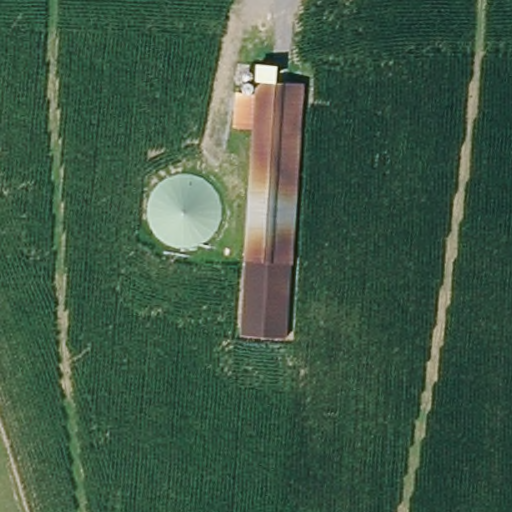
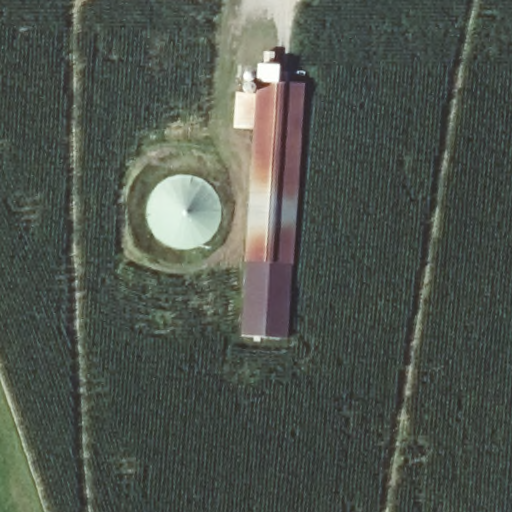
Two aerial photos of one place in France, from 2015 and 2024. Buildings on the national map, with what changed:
unchanged [(253,128),(232,126),(235,92),(254,92),(257,78),(304,82),(287,337),(241,335),(253,128)]

